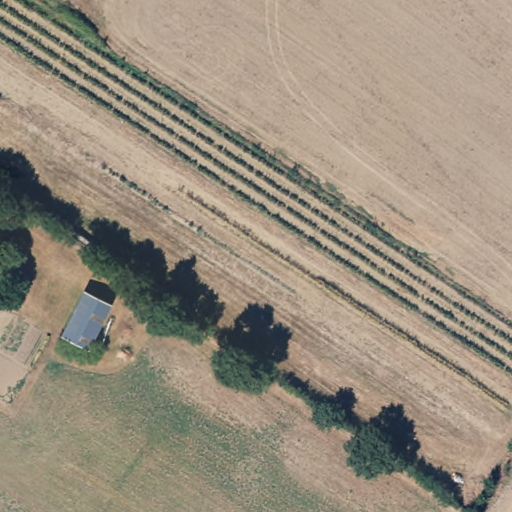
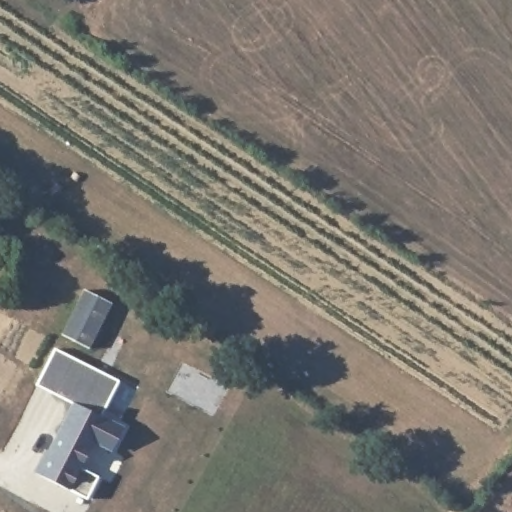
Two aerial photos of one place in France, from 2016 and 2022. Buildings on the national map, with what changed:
unchanged [(90,349),(58,332),(81,287),(110,304),(90,349)]
new [(53,348),(117,380),(99,415),(123,427),(111,451),(94,441),(81,467),(98,476),(86,499),(32,471),(43,448),(47,450),(70,403),(35,384),(53,348)]

